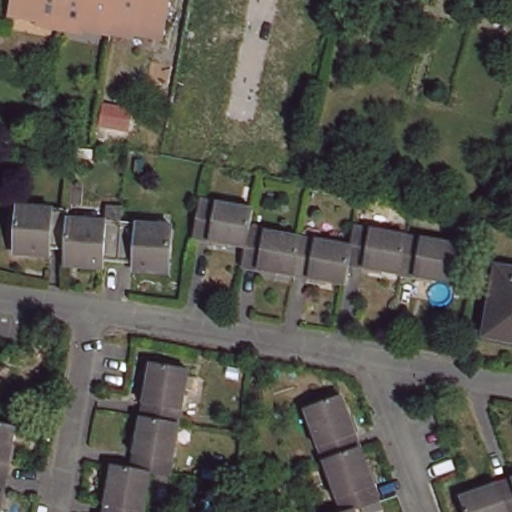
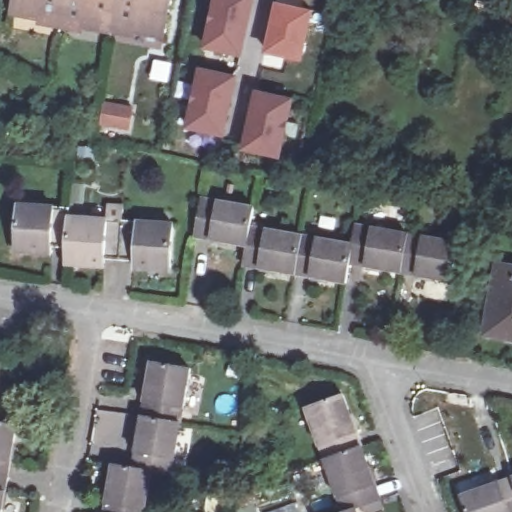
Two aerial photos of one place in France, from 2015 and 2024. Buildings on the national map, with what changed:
unchanged [(38,22),(8,17),(12,0),(64,0),(61,17),(39,14),(38,22)]
unchanged [(111,34),(80,29),(82,21),(61,17),(64,0),(117,0),(113,21),(111,34)]
unchanged [(134,25),(113,21),(117,0),(169,0),(163,37),(161,37),(133,32),(134,25)]
new [(258,0),(254,15),(257,15),(248,60),(213,52),(224,0),(258,0)]
new [(274,1),(316,10),(302,64),(263,56),(274,1)]
demolished [(214,37),(185,32),(188,10),(218,14),(214,37)]
new [(208,73),(240,80),(237,95),(239,96),(229,140),(196,133),(208,73)]
new [(263,110),(264,110),(268,97),(299,104),(287,162),(253,154),(263,110)]
unchanged [(218,202),(255,209),(251,229),(248,248),(211,242),(196,240),(203,200),(218,202)]
unchanged [(57,206),(72,208),(71,217),(66,248),(51,246),(51,249),(16,245),(23,201),(57,206)]
unchanged [(109,209),(123,211),(122,224),(123,224),(118,263),(103,261),(103,265),(65,260),(66,248),(71,217),(107,222),(109,209)]
unchanged [(138,226),(173,230),(166,273),(132,268),(133,265),(118,263),(123,224),(138,226)]
unchanged [(372,231),(410,238),(403,277),(364,270),(350,267),(354,247),(357,228),(372,231)]
unchanged [(266,232),(303,238),(295,277),(259,271),(244,268),(248,248),(251,229),(266,232)]
unchanged [(317,241),(354,247),(350,267),(346,286),(310,280),(295,277),(303,238),(317,241)]
unchanged [(425,241),(463,248),(456,286),(418,279),(403,277),(410,238),(425,241)]
unchanged [(512,273),(512,342),(485,336),(499,270),(512,273)]
unchanged [(143,402),(144,397),(151,363),(189,370),(183,406),(182,410),(179,425),(141,417),(143,402)]
unchanged [(318,442),(312,427),(304,405),(343,392),(356,430),(358,436),(361,443),(323,457),(318,442)]
unchanged [(133,454),(141,417),(179,425),(173,461),(169,476),(151,472),(131,468),(133,454)]
unchanged [(15,426),(12,441),(5,477),(0,476),(0,423),(3,423),(15,426)]
unchanged [(361,443),(374,482),(379,497),(354,505),(341,510),(336,496),(323,457),(361,443)]
unchanged [(131,468),(151,472),(143,512),(102,512),(103,504),(111,465),(131,468)]
unchanged [(3,492),(0,507),(0,476),(5,477),(3,492)]
unchanged [(512,478),(512,494),(507,480),(512,478)]
unchanged [(455,498),(493,485),(507,480),(512,494),(512,512),(460,512),(455,498)]
unchanged [(341,510),(354,505),(357,512),(334,512),(341,510)]

